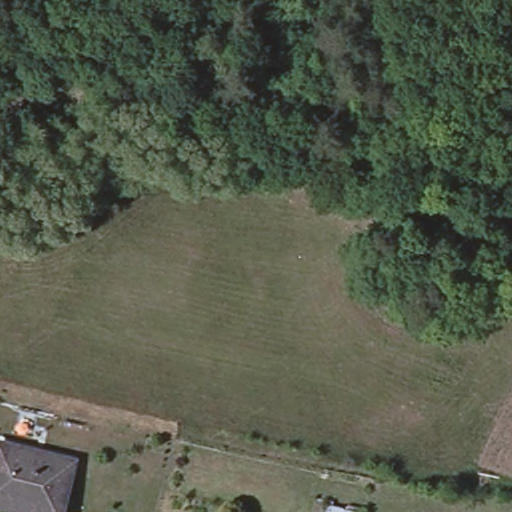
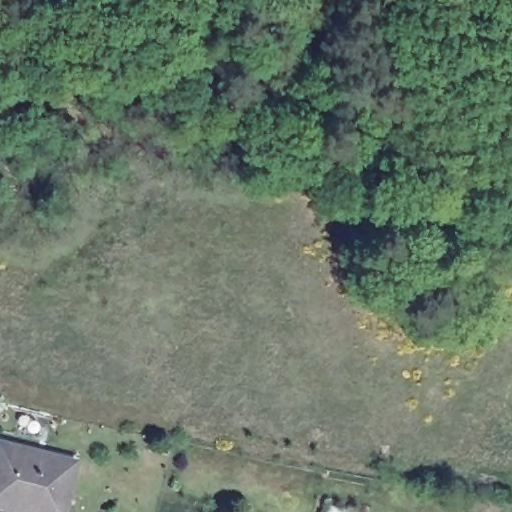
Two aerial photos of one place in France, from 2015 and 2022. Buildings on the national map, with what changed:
unchanged [(0,442),(23,447),(77,462),(64,512),(29,512),(20,510),(19,512),(0,507),(0,442)]
unchanged [(327,506),(357,512),(325,512),(327,506)]

